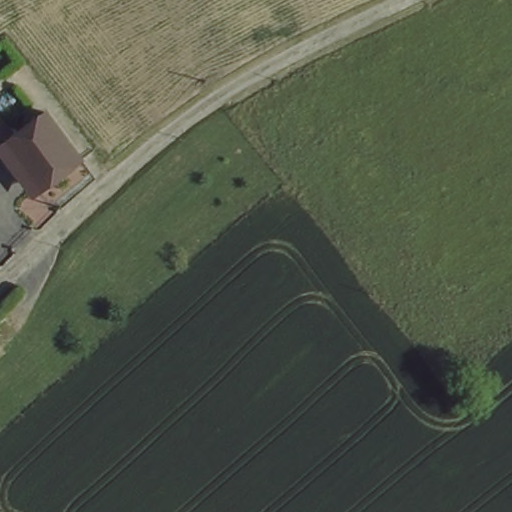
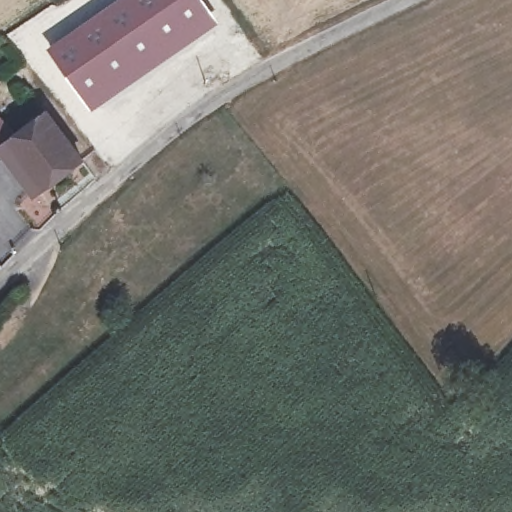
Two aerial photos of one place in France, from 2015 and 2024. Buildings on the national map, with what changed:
new [(204,0),(220,23),(92,111),(47,46),(114,0),(204,0)]
unchanged [(45,116),(80,164),(42,193),(7,144),(0,148),(0,119),(13,138),(45,116)]

